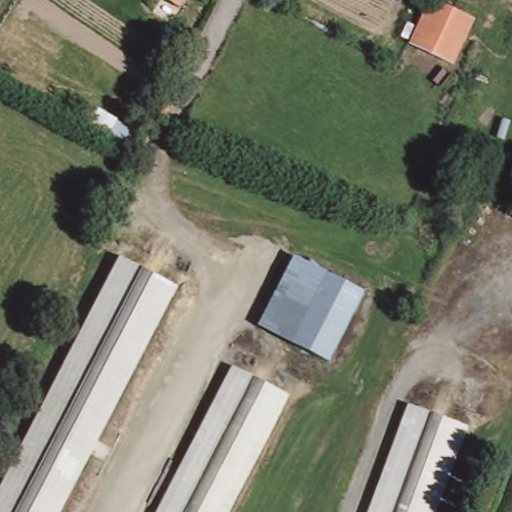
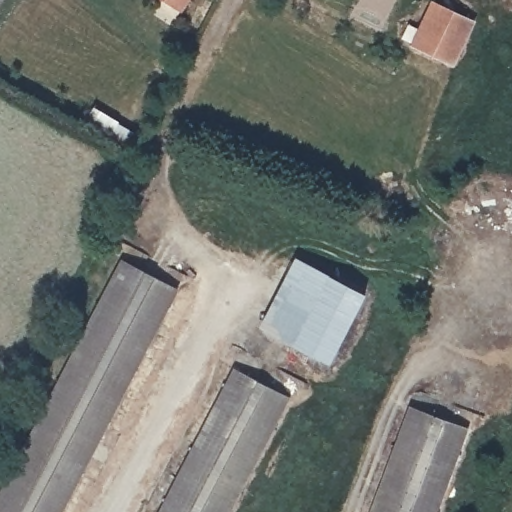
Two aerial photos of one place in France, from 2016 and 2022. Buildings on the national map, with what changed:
unchanged [(179,12),(161,0),(186,0),(179,12)]
unchanged [(471,21),(452,68),(408,48),(427,1),(471,21)]
unchanged [(255,327),(290,258),(325,278),(291,347),(255,327)]
unchanged [(63,512),(0,512),(0,508),(116,262),(169,287),(63,512)]
unchanged [(339,366),(291,347),(325,278),(370,297),(339,366)]
unchanged [(229,512),(167,512),(231,379),(281,402),(229,512)]
unchanged [(461,432),(433,512),(368,512),(403,412),(461,432)]

